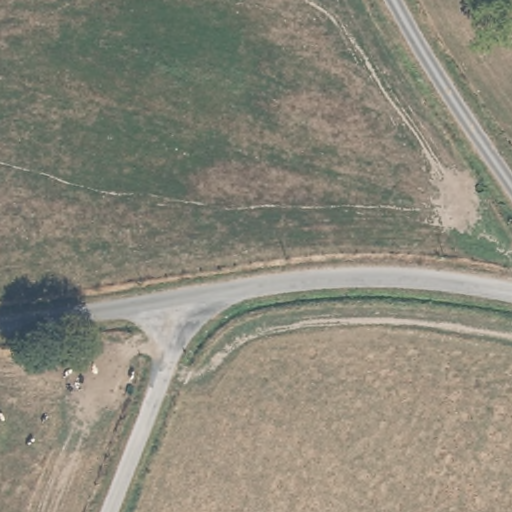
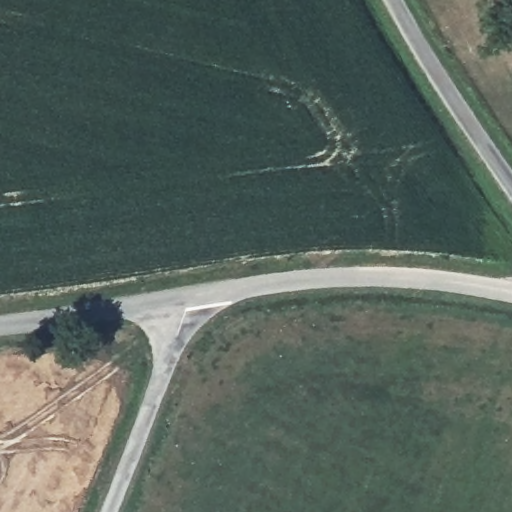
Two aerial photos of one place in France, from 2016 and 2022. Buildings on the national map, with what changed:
[]

